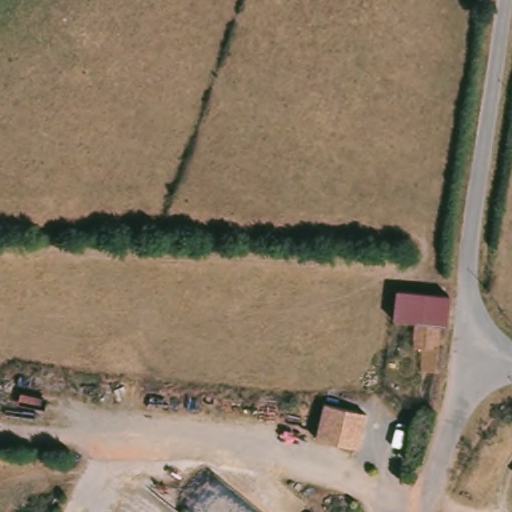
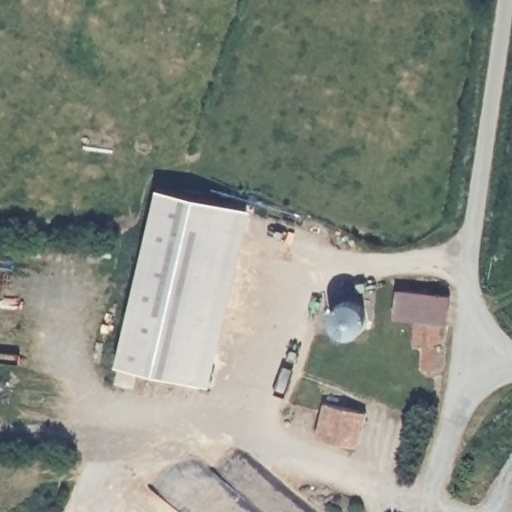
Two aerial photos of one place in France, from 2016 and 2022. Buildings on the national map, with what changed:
new [(250,209),(208,387),(116,365),(157,188),(250,209)]
unchanged [(420,357),(422,337),(425,320),(399,318),(401,288),(432,290),(452,291),(450,322),(445,321),(443,363),(421,362),(420,357)]
new [(341,335),(335,332),(331,323),(330,315),(336,304),(346,301),(356,302),(362,307),(365,314),(365,323),(362,330),(356,335),(341,335)]
unchanged [(367,414),(360,448),(314,438),(322,405),(367,414)]

